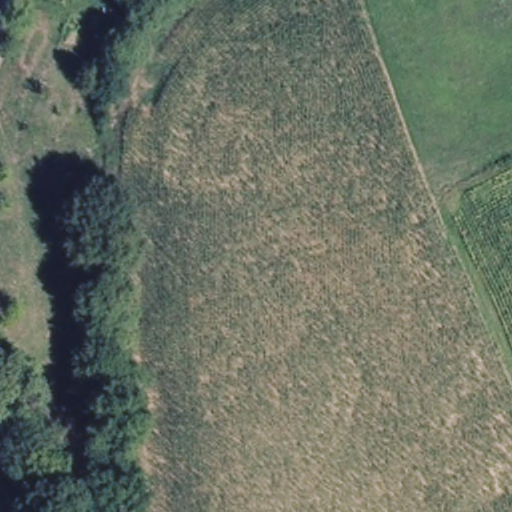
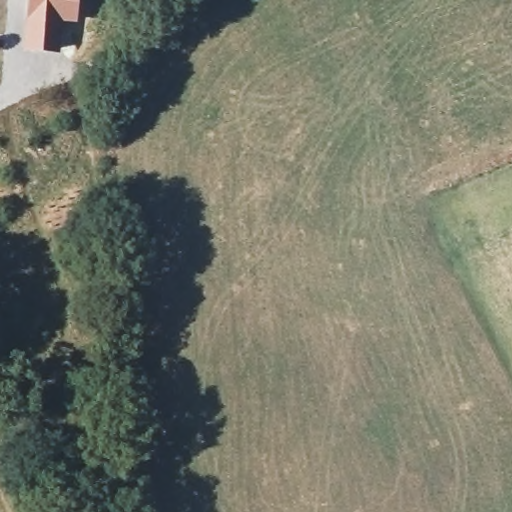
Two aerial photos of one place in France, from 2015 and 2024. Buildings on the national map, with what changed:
new [(74,0),(72,27),(57,26),(55,56),(25,53),(27,23),(29,0),(74,0)]

